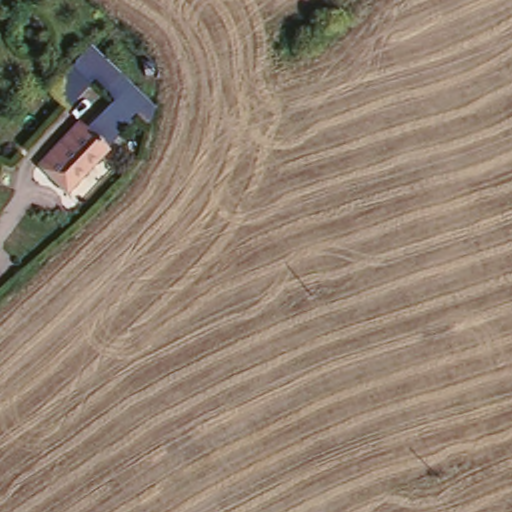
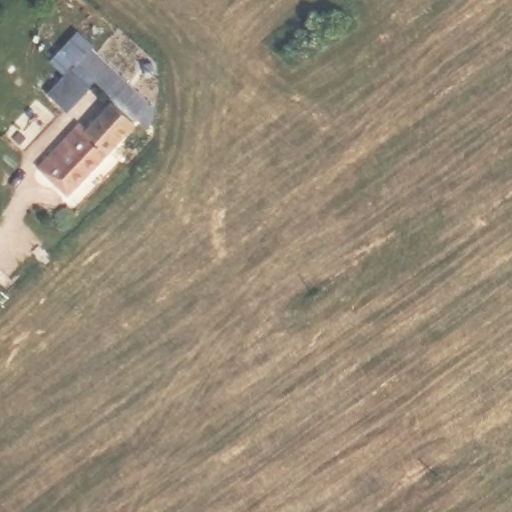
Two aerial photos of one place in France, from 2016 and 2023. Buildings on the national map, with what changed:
unchanged [(325,16),(336,26),(298,62),(287,51),(325,16)]
unchanged [(78,124),(87,131),(111,101),(91,87),(65,114),(45,96),(91,51),(155,110),(149,133),(135,123),(105,153),(111,159),(66,199),(37,171),(78,124)]

